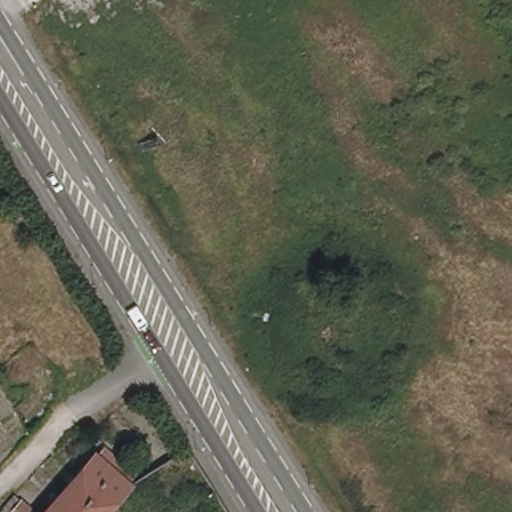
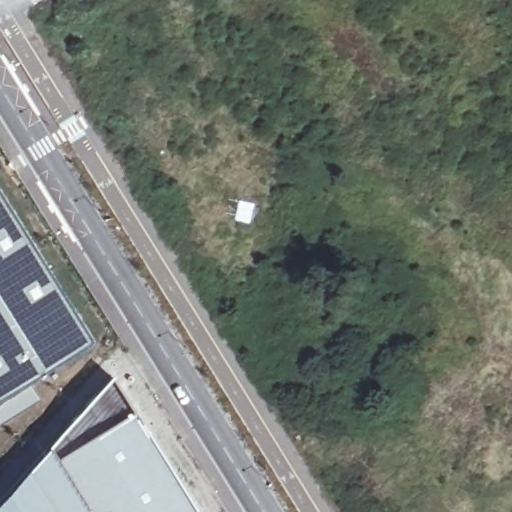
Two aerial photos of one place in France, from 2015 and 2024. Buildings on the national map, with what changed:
new [(0,191),(94,342),(29,384),(38,399),(0,422),(0,191)]
new [(177,478),(198,512),(0,512),(0,499),(112,375),(177,478)]
demolished [(108,512),(50,512),(105,448),(139,476),(108,512)]
demolished [(35,512),(16,512),(24,502),(35,512)]

